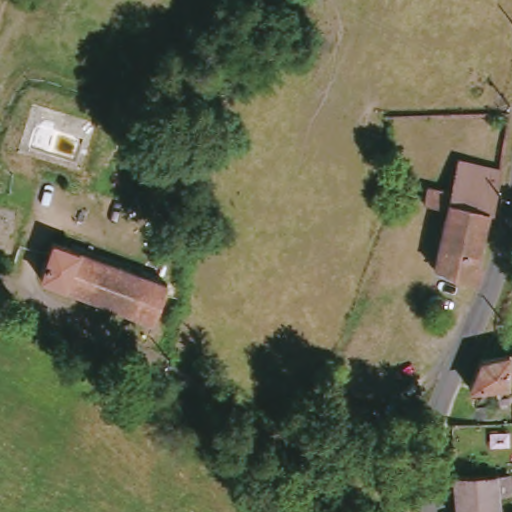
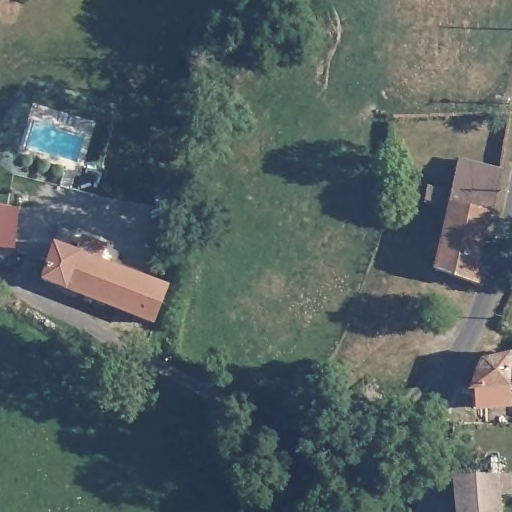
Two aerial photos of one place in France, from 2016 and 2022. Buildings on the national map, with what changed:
unchanged [(438,274),(449,208),(426,204),(429,186),(456,189),(462,159),(504,162),(476,285),(441,275),(438,274)]
new [(21,208),(13,247),(0,244),(0,203),(21,208)]
unchanged [(30,283),(41,241),(158,275),(148,315),(97,301),(30,283)]
unchanged [(509,390),(468,381),(482,351),(512,356),(512,375),(509,390)]
unchanged [(504,510),(496,512),(466,512),(456,475),(496,472),(500,471),(504,510)]

